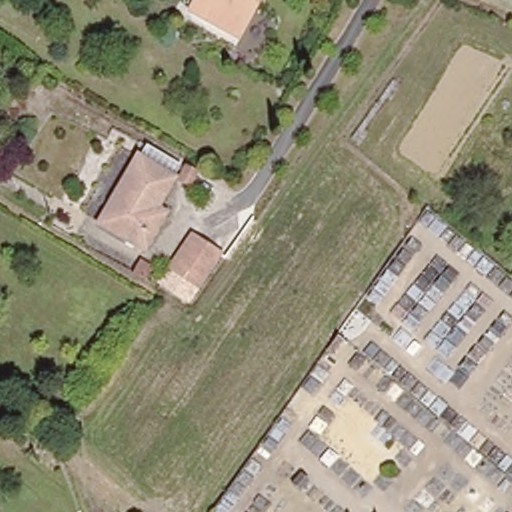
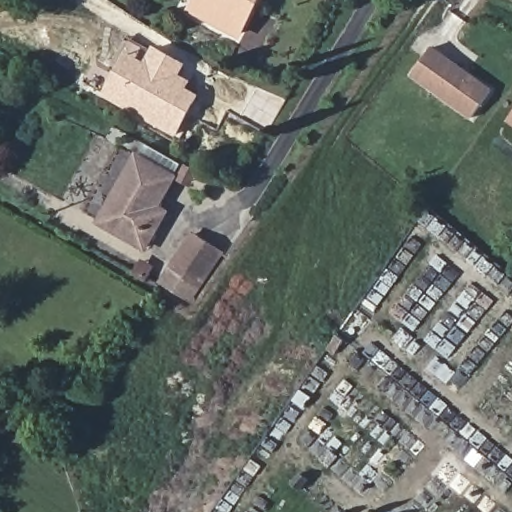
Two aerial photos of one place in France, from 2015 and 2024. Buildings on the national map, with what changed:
unchanged [(254,0),(235,34),(192,10),(198,0),(254,0)]
new [(180,74),(191,80),(187,88),(199,94),(175,137),(101,95),(125,52),(144,62),(153,45),(185,64),(180,74)]
new [(471,119),(411,75),(433,45),(492,88),(471,119)]
new [(506,122),(512,114),(512,127),(506,122)]
unchanged [(185,179),(140,248),(99,217),(132,149),(185,179)]
unchanged [(201,289),(172,274),(175,267),(192,235),(221,251),(205,284),(201,289)]

